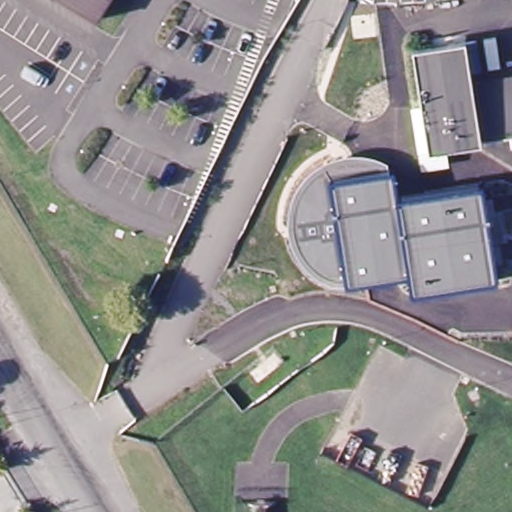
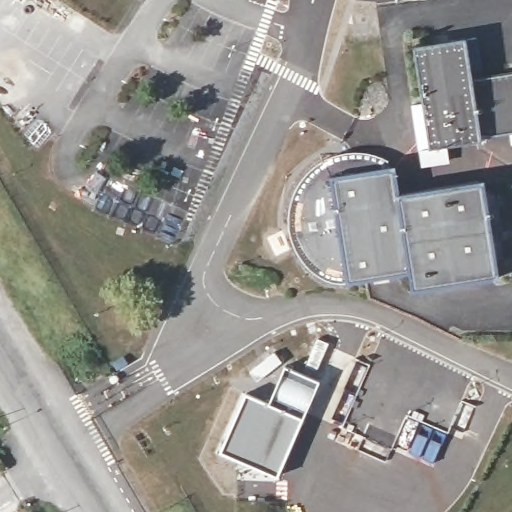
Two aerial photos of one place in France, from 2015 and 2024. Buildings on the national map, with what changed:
unchanged [(93,22),(58,0),(108,0),(93,22)]
unchanged [(482,142),(482,145),(428,152),(413,48),(467,40),(474,90),(512,84),(512,144),(511,137),(482,142)]
unchanged [(390,167),(395,166),(400,191),(484,177),(500,276),(412,289),(408,271),(346,281),(334,282),(322,277),(310,267),(302,259),(295,246),(290,233),(290,221),(290,210),(293,197),(297,187),(303,177),(312,167),(322,161),(334,156),(348,152),(362,151),(377,154),(388,159),(390,167)]
new [(286,366),(320,380),(304,417),(269,401),(286,366)]
new [(244,391),(269,401),(304,417),(278,477),(219,452),(244,391)]

